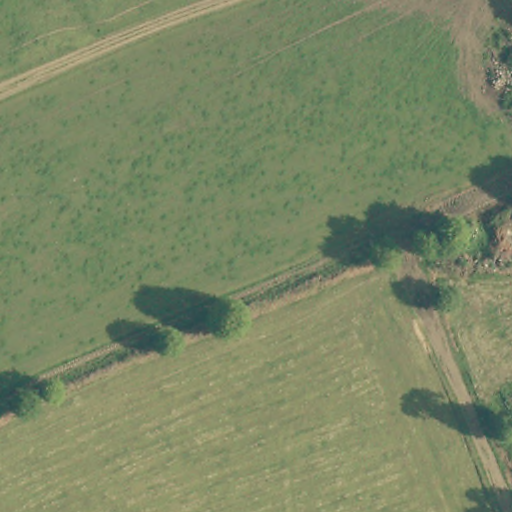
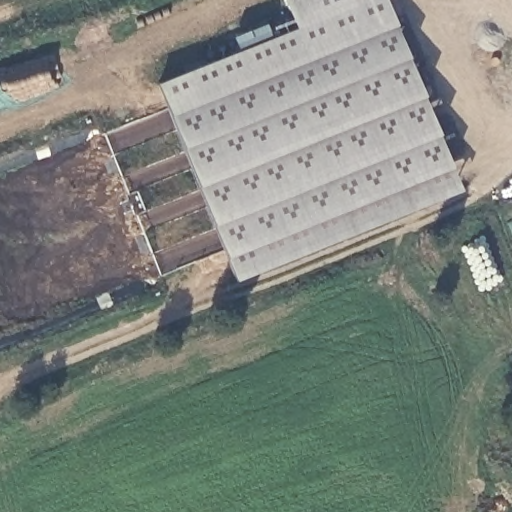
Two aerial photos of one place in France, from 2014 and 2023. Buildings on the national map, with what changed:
new [(157,83),(296,27),(285,0),(386,0),(462,190),(236,281),(157,83)]

